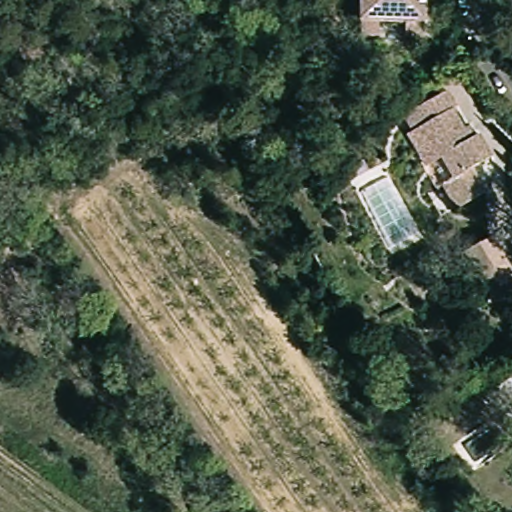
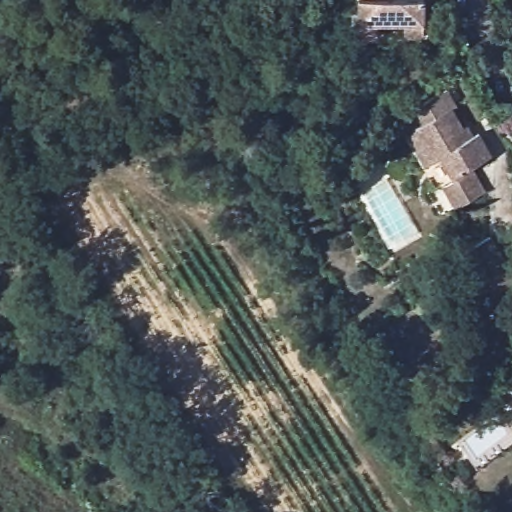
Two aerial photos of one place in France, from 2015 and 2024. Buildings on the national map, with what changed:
unchanged [(422,36),(405,36),(405,23),(375,22),(374,35),(355,34),(356,0),(423,0),(422,36)]
unchanged [(459,107),(455,109),(466,128),(471,127),(477,137),(482,134),(495,157),(475,168),(488,192),(458,208),(444,185),(454,180),(442,159),(436,162),(428,167),(408,134),(413,132),(404,114),(410,111),(448,91),(459,107)]
unchanged [(512,281),(512,295),(491,306),(462,254),(488,241),(512,281)]

